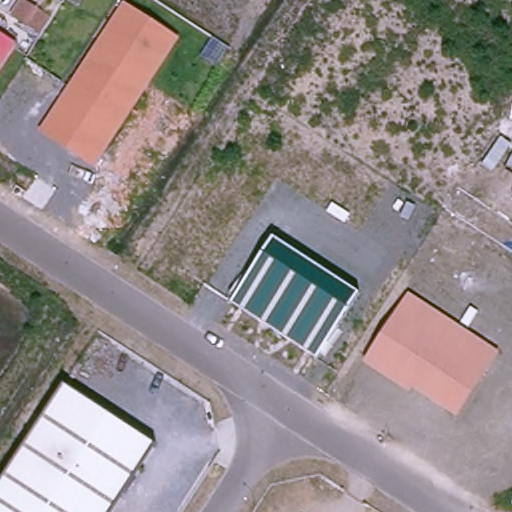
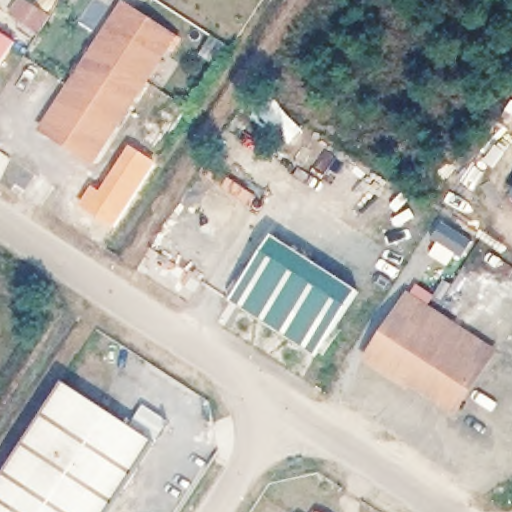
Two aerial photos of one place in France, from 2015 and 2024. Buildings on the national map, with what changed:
unchanged [(114,21),(126,30),(138,11),(176,36),(94,161),(44,128),(114,21)]
unchanged [(15,41),(0,65),(0,31),(15,41)]
new [(153,160),(114,220),(120,223),(115,230),(80,207),(93,186),(101,191),(131,146),(141,152),(153,160)]
unchanged [(512,187),(512,193),(509,192),(512,187)]
unchanged [(272,238),(360,294),(317,356),(230,299),(272,238)]
unchanged [(410,297),(498,350),(459,410),(419,387),(411,394),(367,361),(410,297)]
unchanged [(65,388),(155,442),(110,512),(0,512),(0,485),(65,388)]

